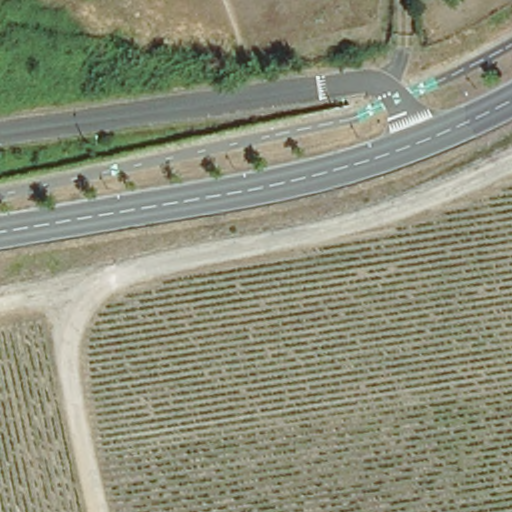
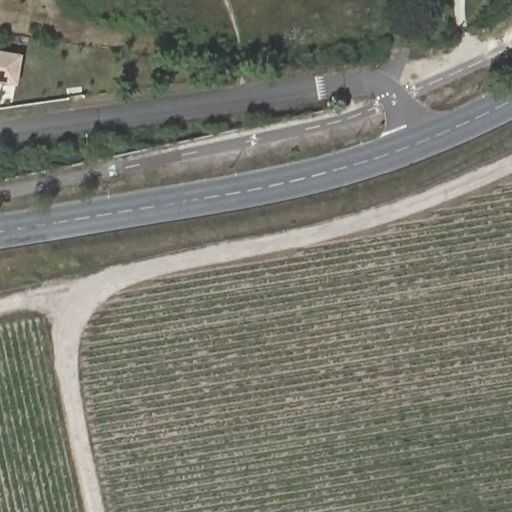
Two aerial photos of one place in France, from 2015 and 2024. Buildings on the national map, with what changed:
new [(17,86),(0,83),(0,50),(22,54),(17,86)]

